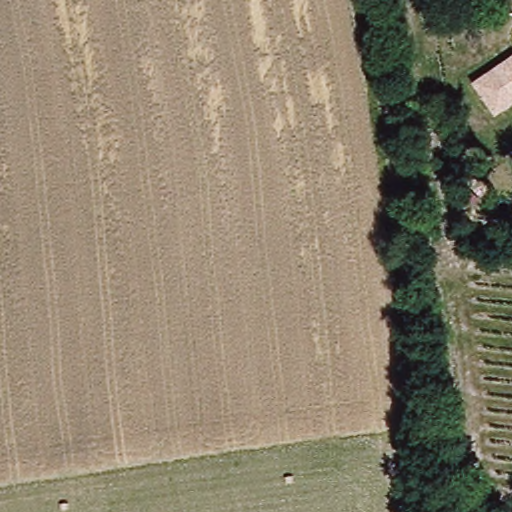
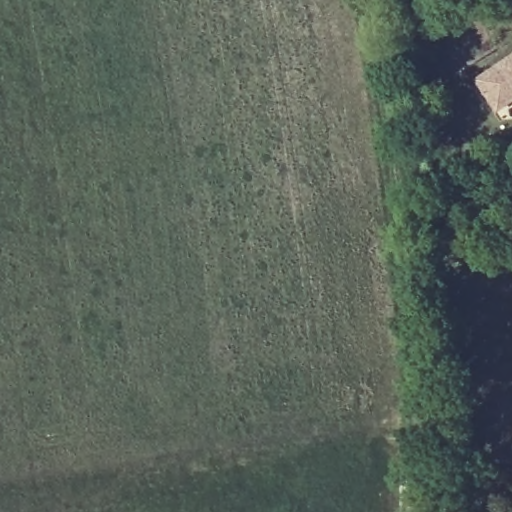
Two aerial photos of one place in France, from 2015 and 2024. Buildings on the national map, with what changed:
unchanged [(494,115),(472,80),(512,53),(512,103),(494,115)]

